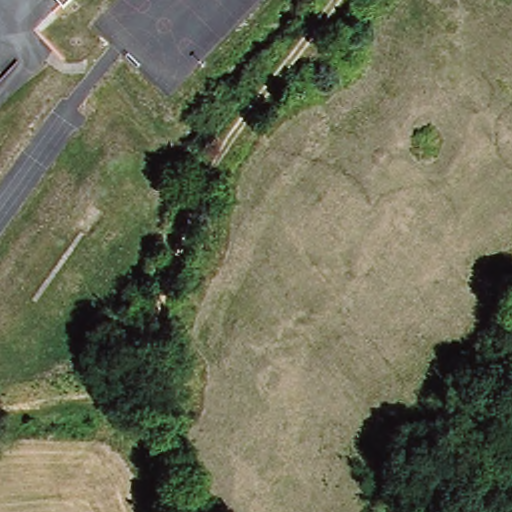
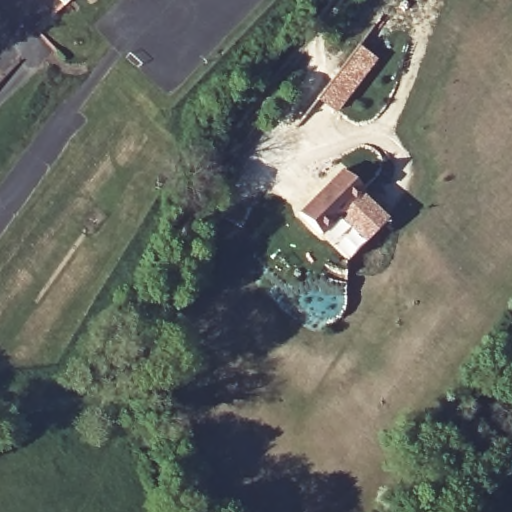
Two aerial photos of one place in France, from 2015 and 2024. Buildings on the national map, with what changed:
unchanged [(67,4),(63,0),(70,0),(67,4)]
new [(357,43),(358,44),(357,47),(373,59),(335,109),(320,95),(317,96),(357,43)]
new [(340,169),(362,190),(359,192),(385,219),(363,242),(337,216),(319,234),(297,213),(340,169)]

